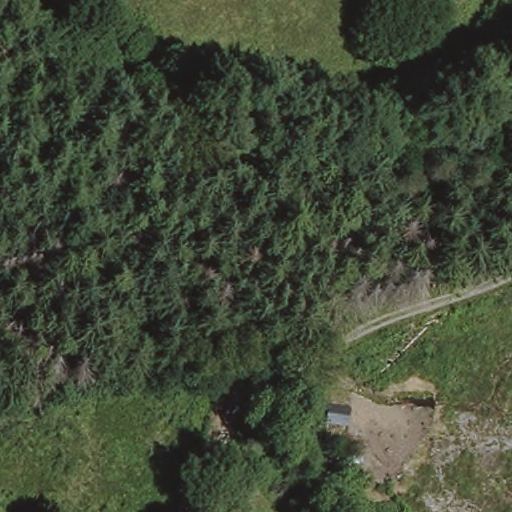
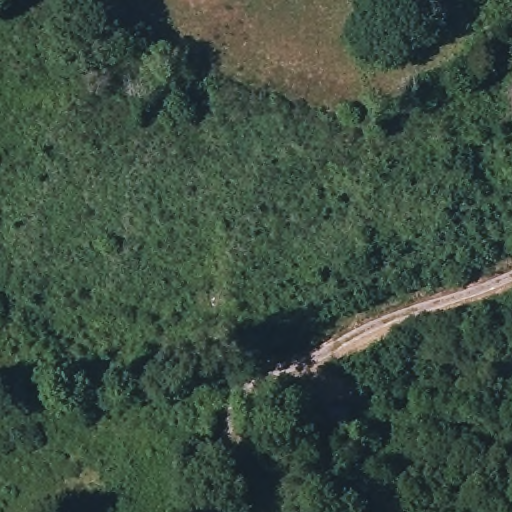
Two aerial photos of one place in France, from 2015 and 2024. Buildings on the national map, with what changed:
unchanged [(349,433),(326,432),(327,414),(351,415),(349,433)]

